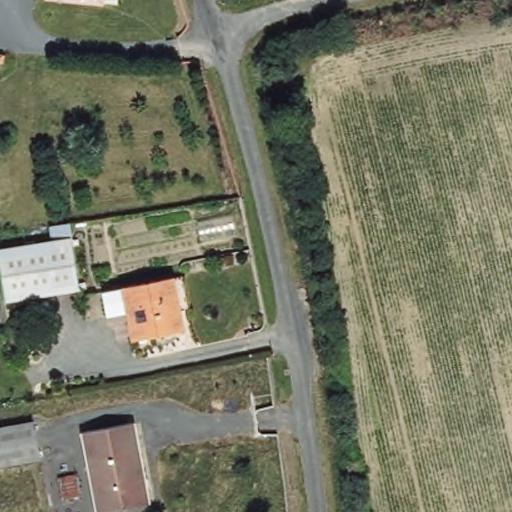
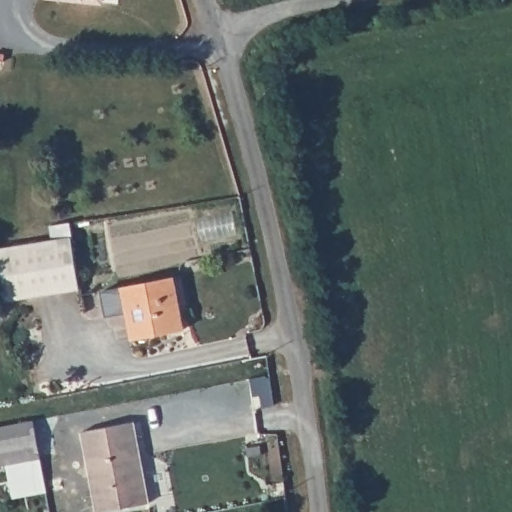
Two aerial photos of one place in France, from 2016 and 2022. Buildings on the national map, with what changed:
unchanged [(99,5),(54,0),(100,0),(99,5)]
unchanged [(3,51),(2,60),(0,59),(0,50),(3,51)]
unchanged [(1,303),(0,297),(0,252),(54,243),(51,229),(73,225),(76,240),(67,241),(75,291),(1,303)]
unchanged [(181,330),(128,341),(122,314),(103,317),(99,292),(116,289),(172,279),(181,330)]
unchanged [(33,422),(40,457),(0,465),(0,428),(33,422)]
unchanged [(148,504),(108,512),(95,512),(80,432),(133,423),(148,504)]

